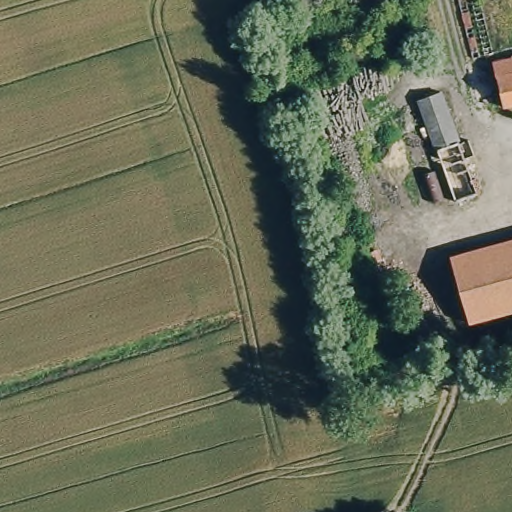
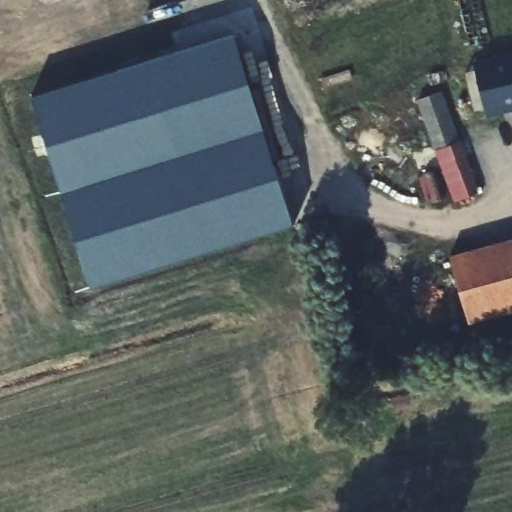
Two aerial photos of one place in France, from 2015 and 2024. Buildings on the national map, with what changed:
demolished [(377,10),(375,0),(417,0),(377,10)]
demolished [(496,57),(486,59),(470,4),(465,4),(481,60),(473,62),(459,0),(480,0),(496,57)]
new [(31,97),(233,34),(292,224),(90,287),(31,97)]
unchanged [(494,66),(512,62),(512,108),(503,110),(494,66)]
demolished [(483,213),(460,221),(417,90),(440,83),(483,213)]
new [(453,203),(416,100),(441,91),(479,194),(453,203)]
unchanged [(442,258),(512,241),(512,289),(455,303),(442,258)]

